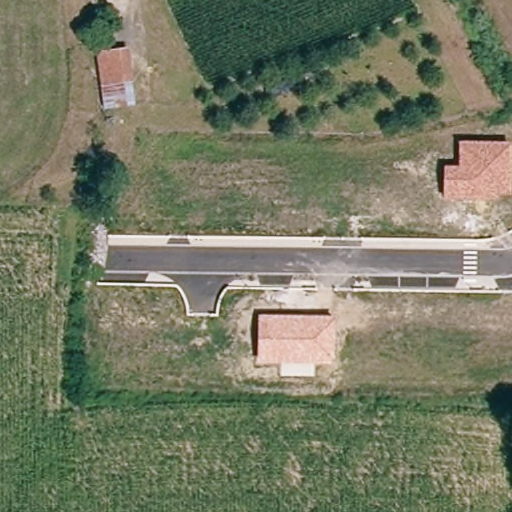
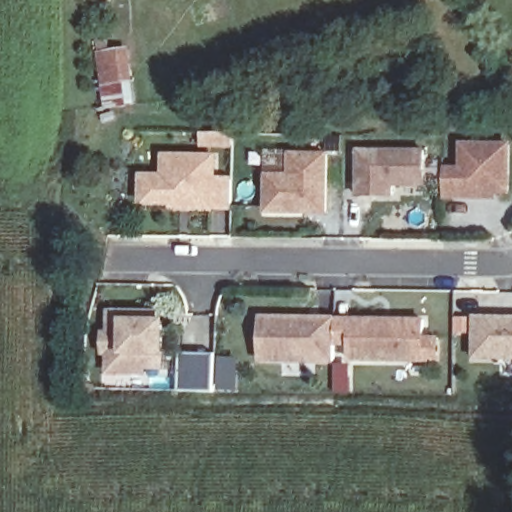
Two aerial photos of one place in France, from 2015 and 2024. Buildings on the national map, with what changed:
unchanged [(122,53),(130,53),(131,85),(124,84),(102,85),(100,54),(122,53)]
unchanged [(511,195),(499,195),(500,199),(443,200),(444,165),(458,165),(458,142),(511,142),(511,195)]
new [(358,154),(425,154),(425,189),(393,189),(393,200),(358,200),(358,154)]
new [(266,179),(290,180),(290,158),(327,159),(327,216),(266,216),(266,179)]
new [(156,180),(164,180),(164,160),(214,160),(214,184),(232,184),(232,211),(188,210),(188,205),(156,205),(141,205),(142,180),(156,180)]
unchanged [(335,316),(335,364),(257,362),(258,315),(335,316)]
new [(425,318),(425,335),(440,336),(439,363),(348,363),(348,391),(333,391),(335,364),(335,316),(425,318)]
unchanged [(143,373),(143,377),(107,378),(107,359),(102,360),(101,340),(107,340),(106,318),(144,318),(154,317),(154,326),(161,326),(161,358),(162,373),(143,373)]
new [(512,323),(512,363),(475,363),(476,322),(512,323)]
new [(180,357),(215,358),(214,383),(214,396),(178,395),(179,382),(180,357)]

